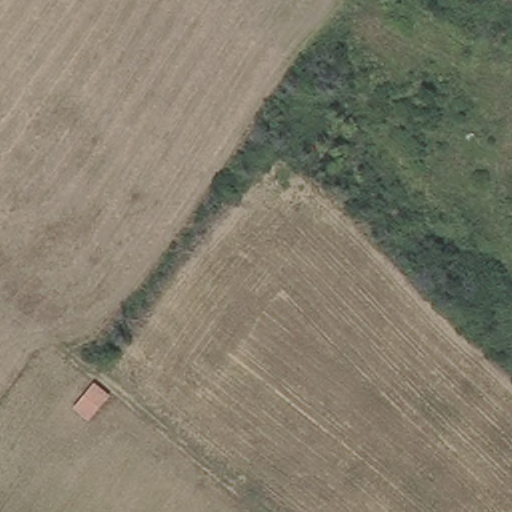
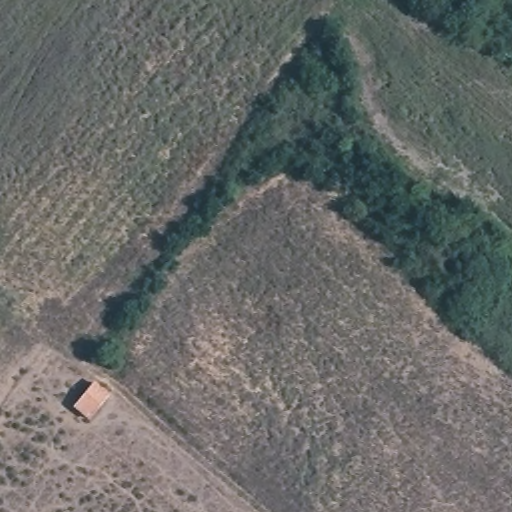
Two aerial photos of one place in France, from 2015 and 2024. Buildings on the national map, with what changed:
unchanged [(75,405),(94,381),(109,393),(89,416),(75,405)]

